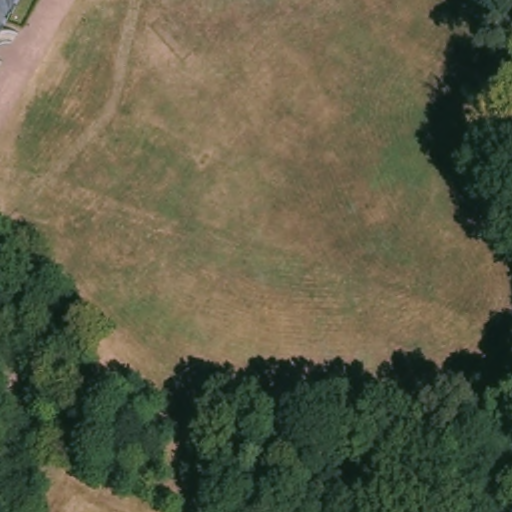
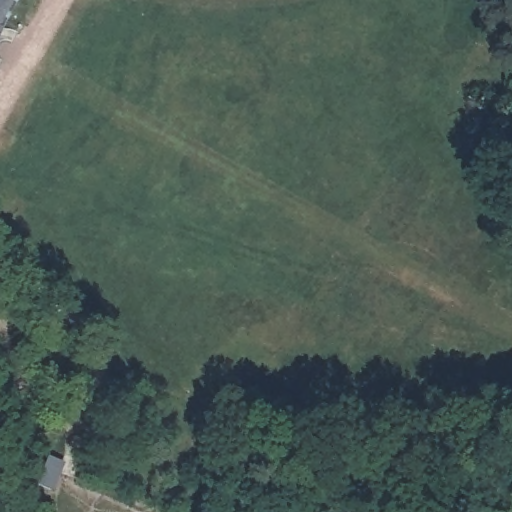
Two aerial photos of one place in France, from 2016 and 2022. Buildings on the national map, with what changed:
unchanged [(2,22),(0,25),(0,0),(13,0),(2,22)]
unchanged [(17,30),(16,33),(12,41),(2,39),(0,44),(0,30),(14,29),(17,30)]
unchanged [(0,64),(0,59),(2,60),(0,64)]

